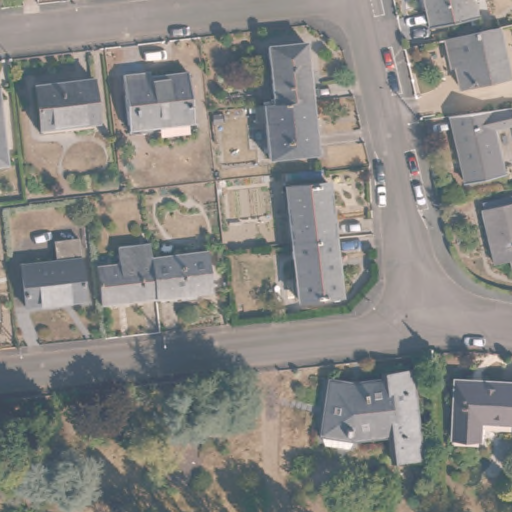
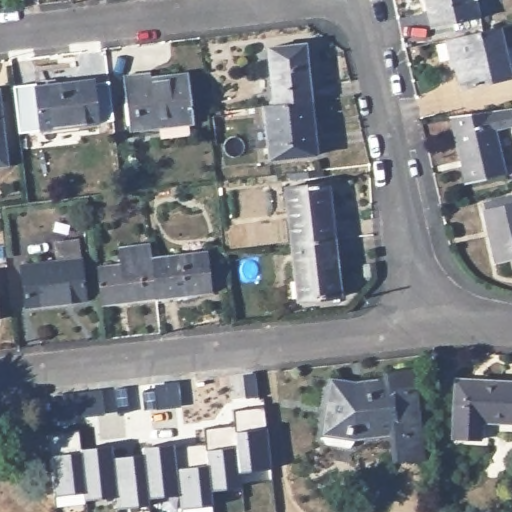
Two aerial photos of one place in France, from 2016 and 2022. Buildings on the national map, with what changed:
unchanged [(438,25),(433,0),(478,0),(482,16),(438,25)]
unchanged [(512,62),(512,79),(468,89),(463,66),(455,67),(450,42),(506,31),(512,62)]
unchanged [(266,56),(307,50),(313,104),(272,109),(266,56)]
unchanged [(142,74),(147,78),(192,73),(197,119),(158,124),(157,129),(132,132),(124,77),(142,74)]
unchanged [(91,80),(98,127),(80,129),(79,123),(40,127),(35,87),(91,80)]
unchanged [(0,164),(0,91),(10,163),(0,164)]
unchanged [(320,155),(271,162),(265,110),(272,109),(313,104),(320,155)]
unchanged [(499,134),(507,177),(468,185),(453,115),(512,107),(512,131),(499,134)]
unchanged [(287,191),(329,186),(336,241),(293,246),(287,191)]
unchanged [(512,272),(509,263),(493,266),(481,214),(512,207),(512,272)]
unchanged [(58,265),(56,243),(84,241),(90,303),(31,307),(27,267),(58,265)]
unchanged [(342,297),(301,302),(293,246),(336,241),(342,297)]
unchanged [(101,307),(97,272),(119,270),(117,250),(149,246),(151,260),(155,296),(156,301),(101,307)]
unchanged [(209,253),(214,295),(185,298),(184,292),(155,296),(151,260),(209,253)]
unchanged [(0,322),(0,308),(2,322),(0,322)]
unchanged [(394,427),(357,432),(358,440),(355,446),(330,446),(327,438),(327,436),(327,432),(330,420),(336,382),(356,385),(357,391),(366,390),(367,380),(388,378),(389,372),(415,368),(427,458),(399,461),(397,451),(394,427)]
unchanged [(512,384),(512,423),(485,422),(485,442),(458,442),(457,384),(512,384)]
new [(269,410),(276,468),(245,472),(239,428),(237,413),(269,410)]
new [(239,428),(245,472),(246,487),(212,492),(210,446),(208,432),(239,428)]
new [(80,435),(82,452),(86,494),(55,497),(49,438),(80,435)]
new [(210,446),(212,492),(214,507),(182,510),(181,500),(179,450),(210,446)]
new [(179,447),(179,450),(181,500),(149,504),(144,457),(143,452),(179,447)]
new [(113,449),(114,461),(118,500),(87,503),(86,494),(82,452),(113,449)]
new [(144,457),(149,504),(150,509),(123,512),(119,512),(118,500),(114,461),(144,457)]

